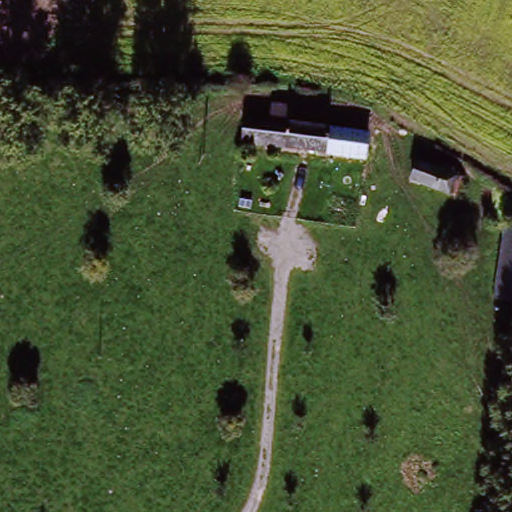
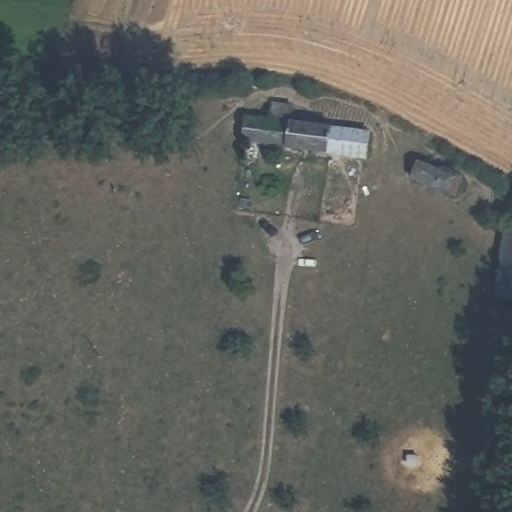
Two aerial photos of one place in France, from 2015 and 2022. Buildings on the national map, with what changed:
unchanged [(362,159),(327,154),(265,145),(240,142),(245,119),(268,122),(271,106),(289,109),(287,124),(366,135),(362,159)]
unchanged [(459,178),(452,196),(415,183),(421,164),(459,178)]
unchanged [(499,295),(509,228),(512,228),(512,298),(499,295)]

